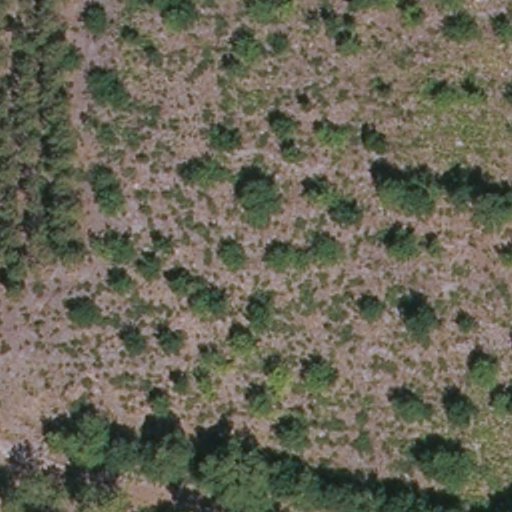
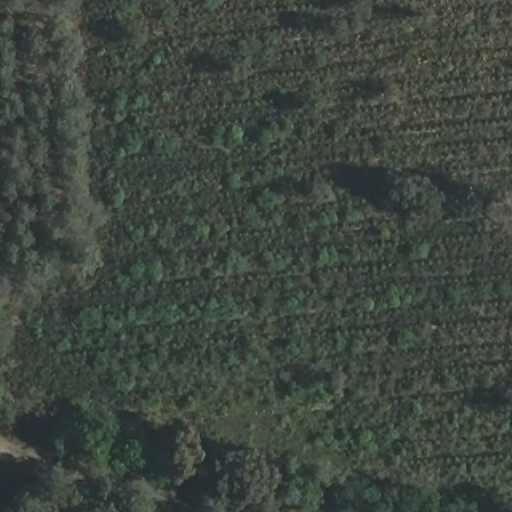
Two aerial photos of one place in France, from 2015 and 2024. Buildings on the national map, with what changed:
[]

